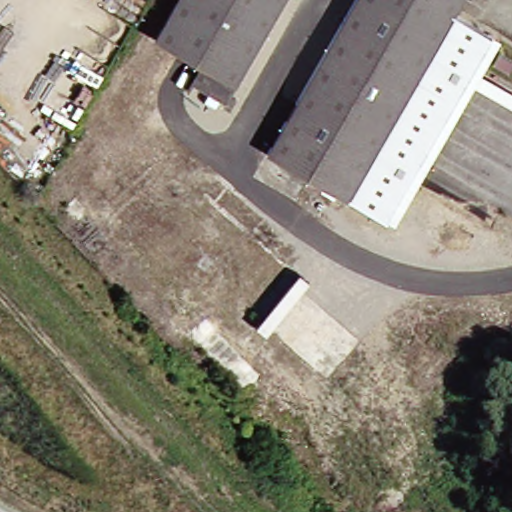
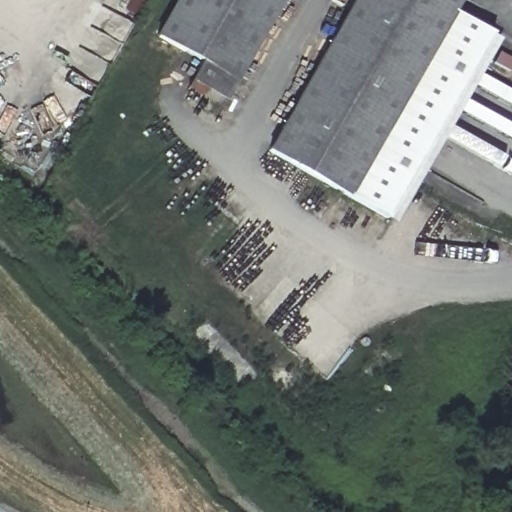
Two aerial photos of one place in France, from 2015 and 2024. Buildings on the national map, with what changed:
unchanged [(184,82),(195,64),(150,37),(172,0),(277,0),(229,83),(219,102),(184,82)]
unchanged [(457,0),(451,11),(373,146),(294,101),(352,0),(456,0),(457,0)]
unchanged [(373,146),(451,11),(499,40),(397,226),(341,203),(373,146)]
unchanged [(341,203),(262,157),(294,101),(373,146),(341,203)]

